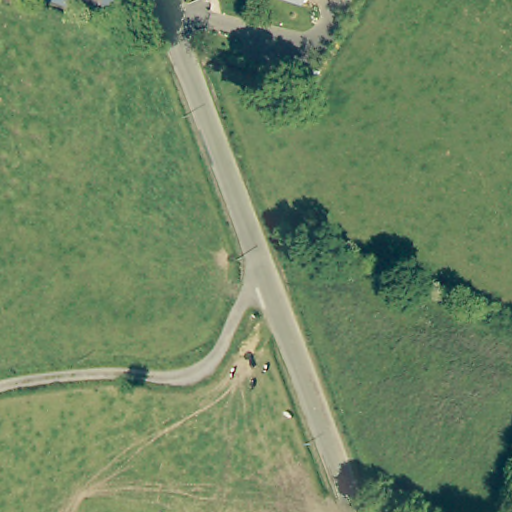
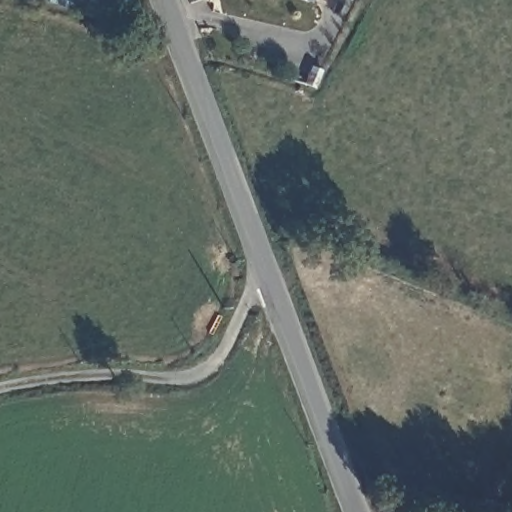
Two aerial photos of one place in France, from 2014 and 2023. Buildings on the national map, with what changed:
unchanged [(103,21),(43,0),(44,0),(113,0),(103,21)]

